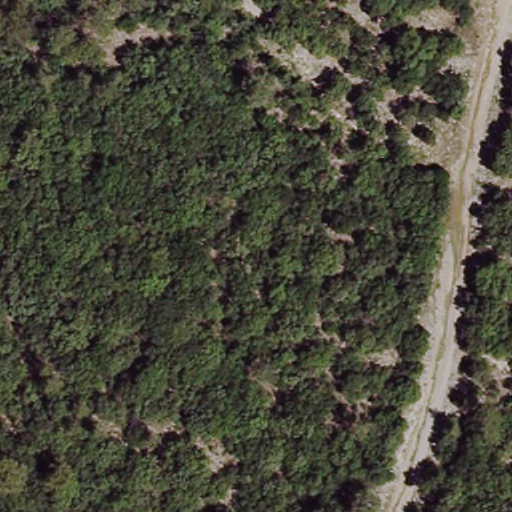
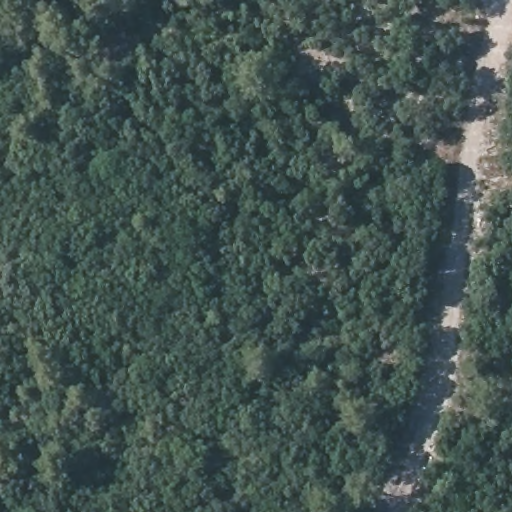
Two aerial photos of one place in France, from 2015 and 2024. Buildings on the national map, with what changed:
[]

